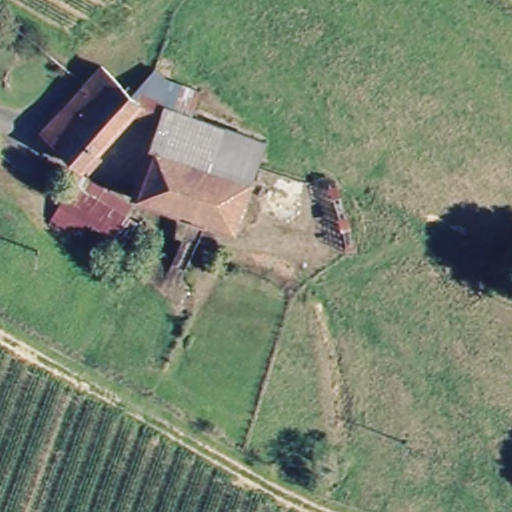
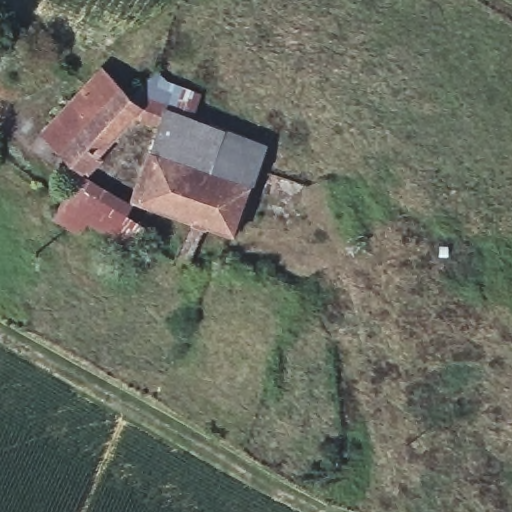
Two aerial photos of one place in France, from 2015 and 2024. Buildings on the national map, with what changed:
unchanged [(78,169),(41,131),(104,69),(126,92),(140,109),(78,169)]
unchanged [(140,109),(126,92),(132,85),(139,93),(154,74),(200,96),(190,124),(158,114),(140,109)]
unchanged [(234,237),(135,200),(158,114),(190,124),(264,148),(257,170),(248,199),(234,237)]
unchanged [(122,252),(106,242),(79,223),(69,235),(46,218),(71,183),(76,178),(124,213),(120,222),(134,232),(122,252)]

